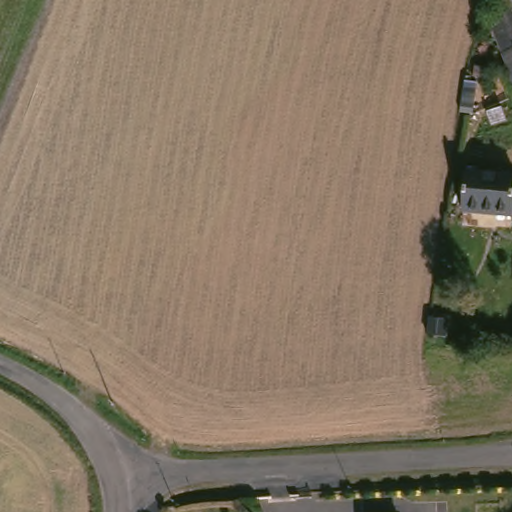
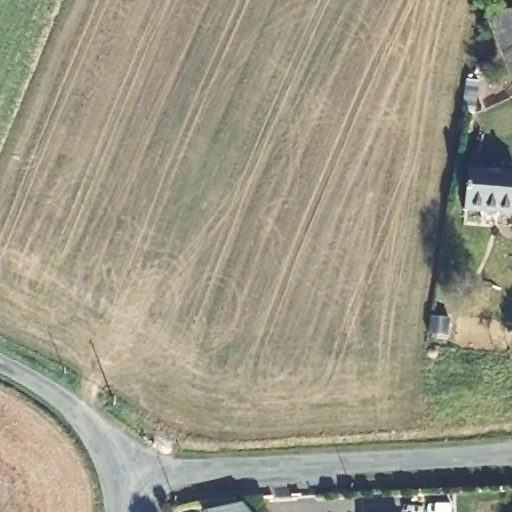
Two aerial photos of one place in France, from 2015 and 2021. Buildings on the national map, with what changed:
unchanged [(512,15),(512,64),(493,20),(512,15)]
unchanged [(512,216),(472,215),(473,173),(512,174),(512,216)]

